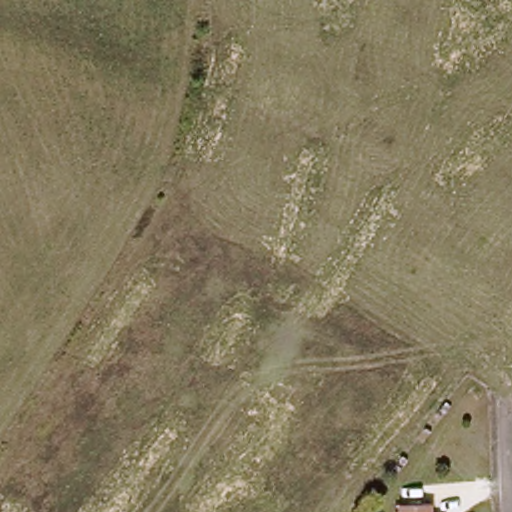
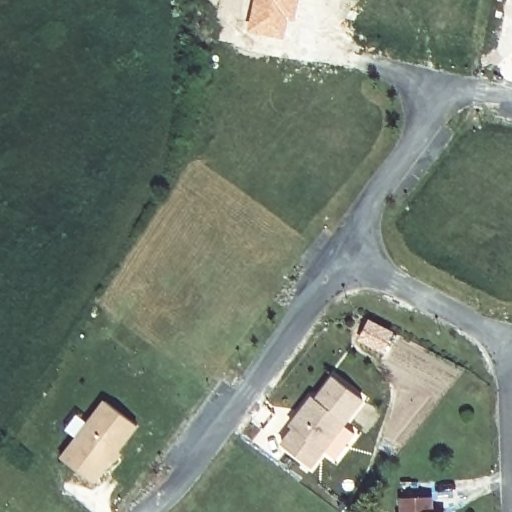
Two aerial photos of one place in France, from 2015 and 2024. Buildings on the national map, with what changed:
new [(253,0),(298,0),(293,20),(291,20),(284,40),(245,31),(253,0)]
new [(286,424),(300,406),(309,395),(312,397),(329,376),(357,398),(305,465),(277,442),(290,427),(286,424)]
new [(102,402),(134,426),(89,484),(58,460),(102,402)]
unchanged [(399,512),(400,497),(432,497),(432,512),(399,512)]

